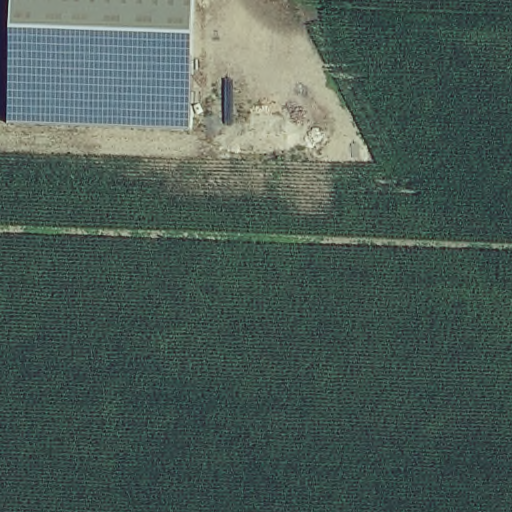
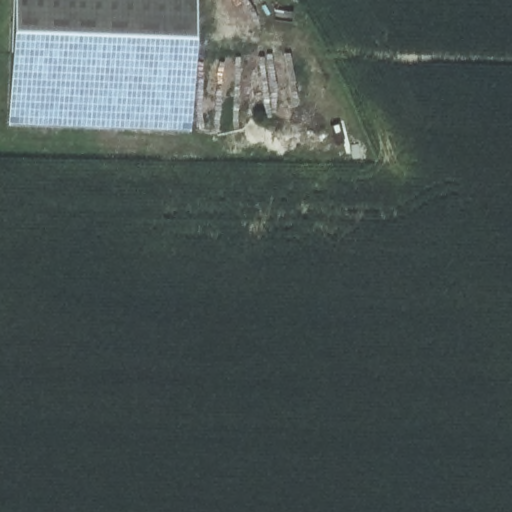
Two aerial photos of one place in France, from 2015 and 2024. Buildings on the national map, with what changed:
unchanged [(8,114),(12,0),(194,0),(189,120),(8,114)]

